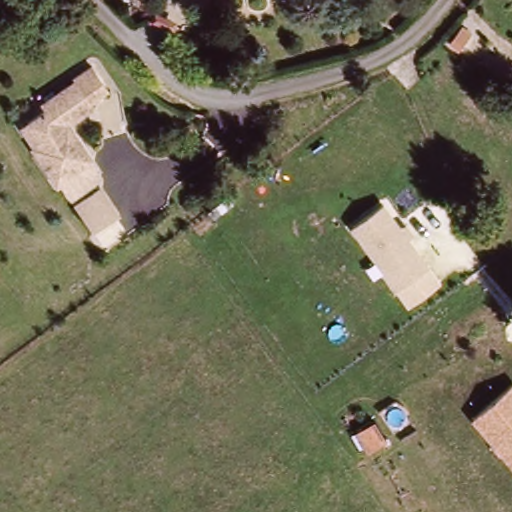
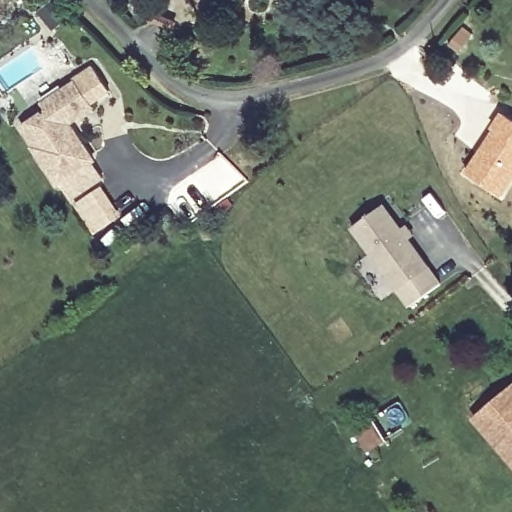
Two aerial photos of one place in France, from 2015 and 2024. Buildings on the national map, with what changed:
unchanged [(35,121),(55,109),(51,103),(70,90),(102,68),(117,90),(98,103),(101,108),(74,126),(77,131),(81,129),(101,159),(99,162),(111,179),(78,199),(68,183),(65,185),(40,147),(43,145),(31,124),(35,121)]
new [(512,119),(512,182),(501,197),(464,170),(500,111),(512,119)]
new [(101,190),(120,217),(100,230),(82,203),(101,190)]
unchanged [(353,226),(386,202),(404,226),(409,223),(417,233),(411,237),(442,283),(412,307),(353,226)]
unchanged [(512,385),(512,463),(473,417),(512,385)]
unchanged [(355,431),(375,418),(389,440),(367,453),(355,431)]

